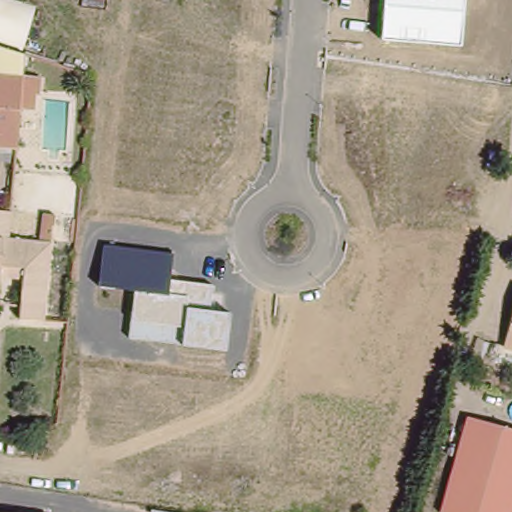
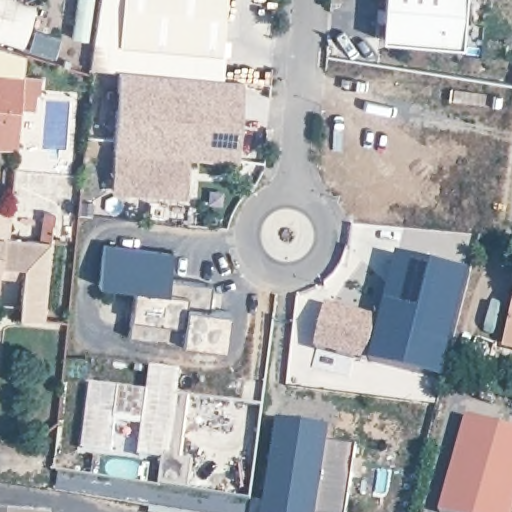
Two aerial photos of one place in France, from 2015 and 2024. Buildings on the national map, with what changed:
unchanged [(23,46),(0,38),(0,0),(2,0),(36,12),(23,46)]
new [(220,81),(88,70),(98,0),(123,0),(119,47),(221,56),(220,81)]
new [(119,47),(123,0),(226,0),(221,56),(119,47)]
unchanged [(460,44),(379,38),(382,0),(463,0),(460,44)]
unchanged [(25,79),(0,76),(0,47),(27,56),(25,79)]
new [(121,75),(246,86),(238,165),(190,161),(187,199),(111,193),(121,75)]
unchanged [(23,106),(0,103),(0,76),(25,79),(23,106)]
unchanged [(0,103),(23,106),(20,145),(0,143),(0,103)]
unchanged [(0,210),(17,213),(15,238),(52,243),(44,321),(16,317),(20,280),(0,279),(0,286),(0,210)]
unchanged [(222,349),(178,345),(128,336),(134,289),(98,285),(103,243),(172,254),(169,280),(211,285),(208,310),(229,312),(222,349)]
new [(471,274),(444,378),(371,359),(398,254),(471,274)]
new [(381,317),(371,359),(369,363),(315,348),(326,304),(381,317)]
new [(93,389),(150,396),(153,371),(183,375),(179,400),(191,401),(183,464),(195,466),(191,494),(161,490),(165,462),(141,459),(146,429),(118,425),(113,456),(85,452),(93,389)]
unchanged [(512,424),(512,512),(441,512),(471,413),(512,424)]
new [(262,502),(275,417),(330,426),(329,442),(318,512),(249,512),(251,501),(262,502)]
new [(346,512),(318,512),(329,443),(356,445),(346,512)]
unchanged [(0,512),(0,510),(19,512),(0,512)]

